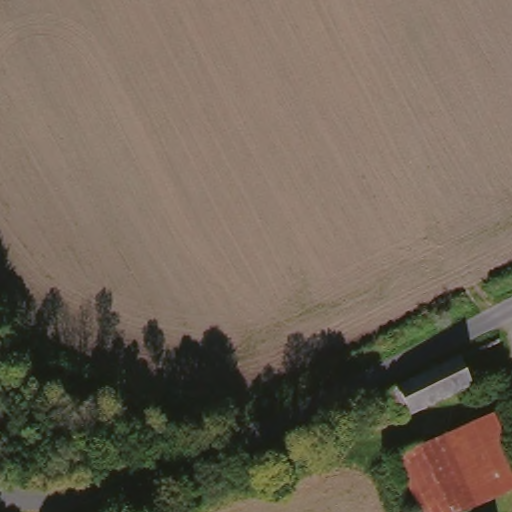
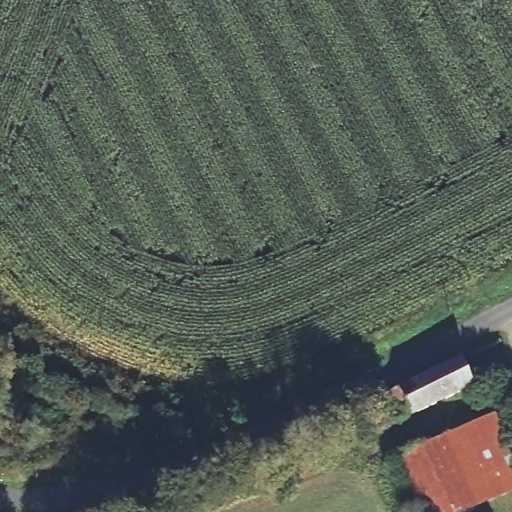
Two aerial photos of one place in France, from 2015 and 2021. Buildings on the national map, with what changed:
unchanged [(466,385),(452,356),(480,341),(494,371),(466,385)]
unchanged [(386,425),(372,398),(452,356),(466,385),(386,425)]
unchanged [(433,440),(489,411),(512,455),(512,489),(469,511),(468,508),(434,443),(433,440)]
unchanged [(414,512),(388,467),(434,443),(468,508),(462,512),(414,512)]

